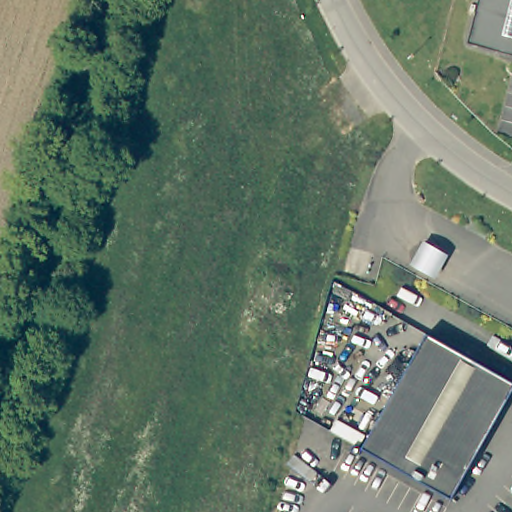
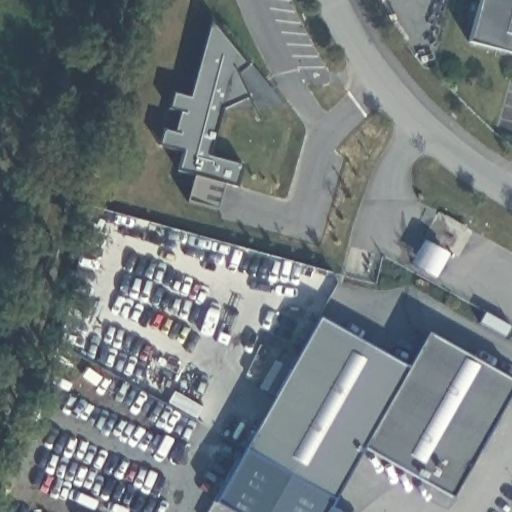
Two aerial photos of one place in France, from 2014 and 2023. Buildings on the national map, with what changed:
unchanged [(469,44),(480,0),(512,0),(512,55),(469,44)]
new [(172,130),(177,111),(166,108),(171,91),(187,96),(188,92),(185,91),(206,10),(284,104),(253,106),(223,109),(210,154),(242,163),(236,186),(223,183),(217,209),(186,201),(193,174),(176,171),(181,151),(157,145),(161,128),(172,130)]
unchanged [(439,256),(426,281),(400,268),(414,243),(439,256)]
new [(245,450),(275,398),(258,388),(274,362),(291,370),(320,318),(409,368),(362,450),(334,500),(245,450)]
unchanged [(512,382),(512,403),(455,503),(362,450),(429,334),(512,382)]

